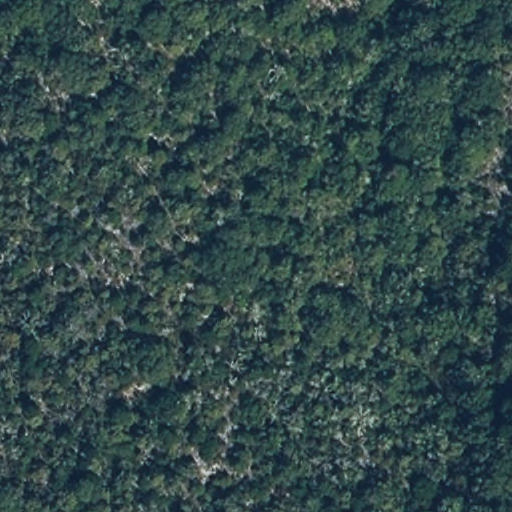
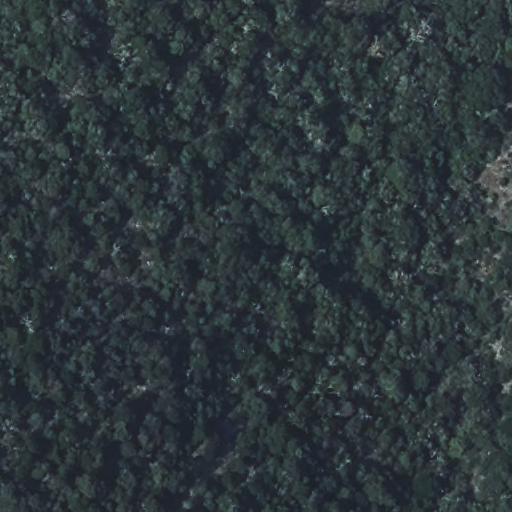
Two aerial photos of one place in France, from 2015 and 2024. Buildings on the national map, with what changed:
[]

